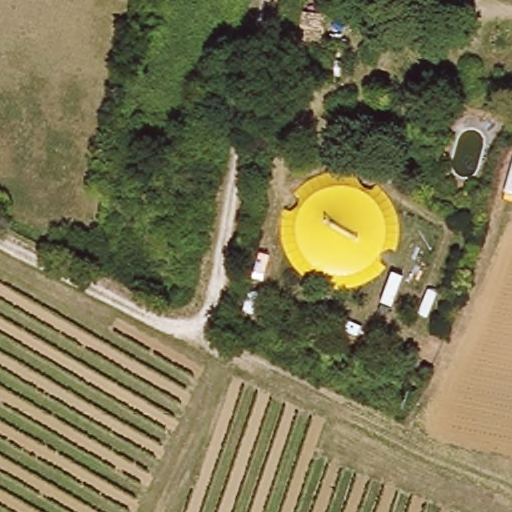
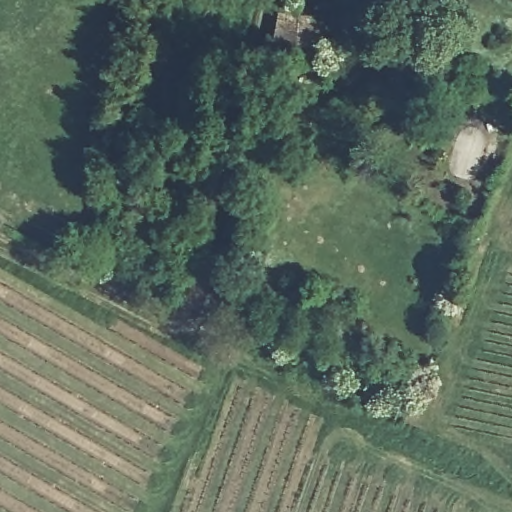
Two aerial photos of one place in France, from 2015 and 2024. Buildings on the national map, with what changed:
unchanged [(319,46),(276,38),(283,0),(298,0),(297,5),(326,11),(319,46)]

